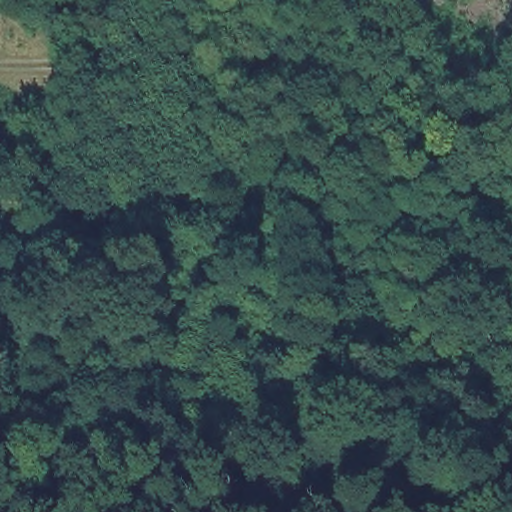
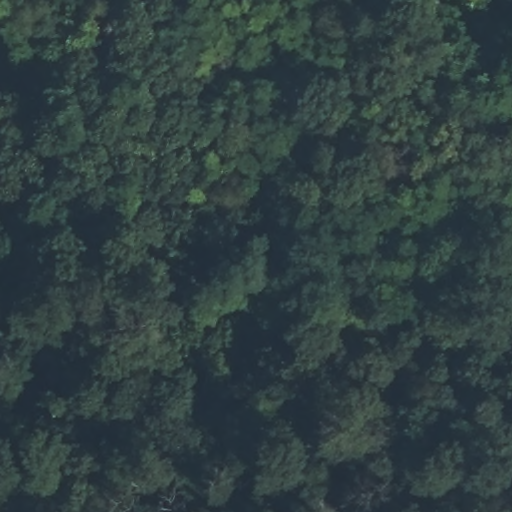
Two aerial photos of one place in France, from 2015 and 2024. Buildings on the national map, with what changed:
[]

